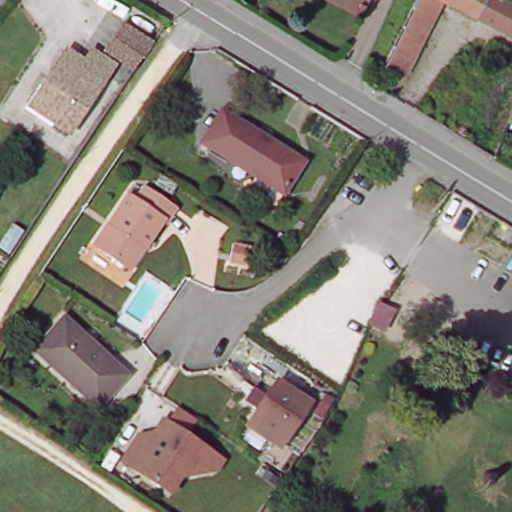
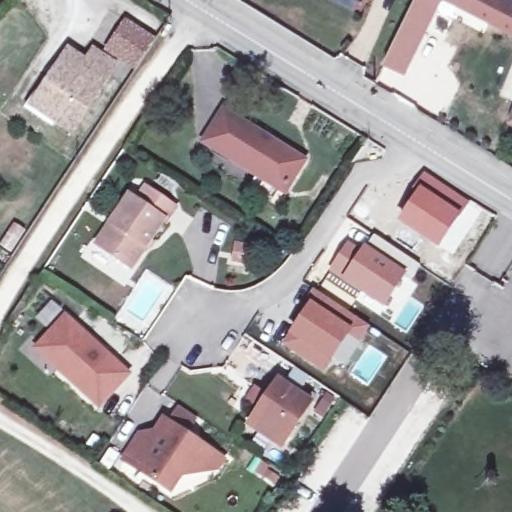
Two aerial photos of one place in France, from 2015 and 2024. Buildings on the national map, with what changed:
unchanged [(341,0),(370,0),(365,12),(341,0)]
unchanged [(447,0),(407,79),(387,69),(423,0),(447,0)]
unchanged [(505,0),(512,4),(512,33),(447,0),(505,0)]
unchanged [(107,46),(127,16),(155,35),(137,65),(107,46)]
unchanged [(27,104),(47,75),(50,76),(72,45),(89,56),(96,46),(116,60),(110,70),(69,131),(27,104)]
unchanged [(285,192),(277,205),(250,189),(257,175),(221,153),(242,119),(306,159),(285,192)]
new [(452,255),(440,247),(438,249),(393,220),(423,170),(471,202),(482,209),(452,255)]
unchanged [(167,226),(164,224),(132,273),(96,250),(128,199),(135,204),(145,190),(177,211),(167,226)]
new [(347,238),(361,246),(363,242),(407,270),(382,307),(327,270),(347,238)]
new [(314,287),(370,325),(357,343),(347,337),(323,373),(277,345),(314,287)]
unchanged [(136,372),(108,407),(68,376),(42,356),(47,349),(70,321),(136,372)]
unchanged [(257,408),(246,401),(253,389),(265,396),(275,380),(308,401),(280,445),(247,424),(257,408)]
unchanged [(155,478),(124,457),(140,434),(150,441),(165,418),(168,420),(178,407),(195,418),(186,432),(214,450),(224,457),(218,466),(202,469),(180,473),(170,488),(155,478)]

